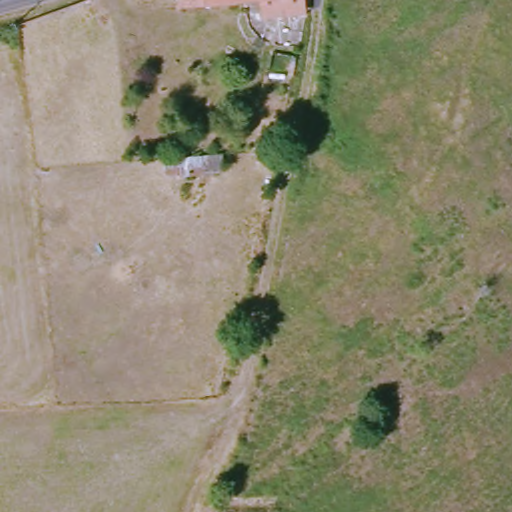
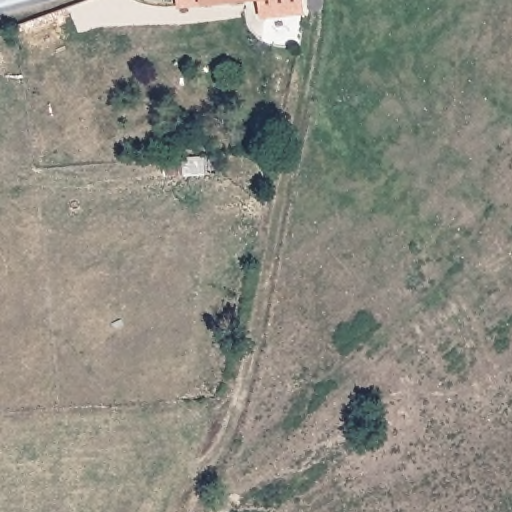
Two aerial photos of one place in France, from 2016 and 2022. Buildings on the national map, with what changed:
unchanged [(177,0),(245,0),(178,9),(177,0)]
unchanged [(247,15),(245,0),(292,0),(292,9),(247,15)]

